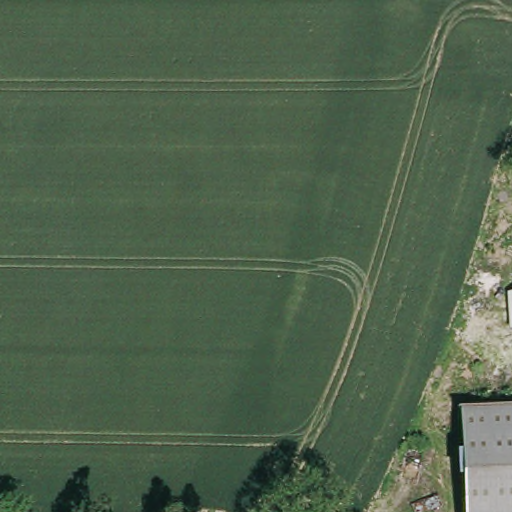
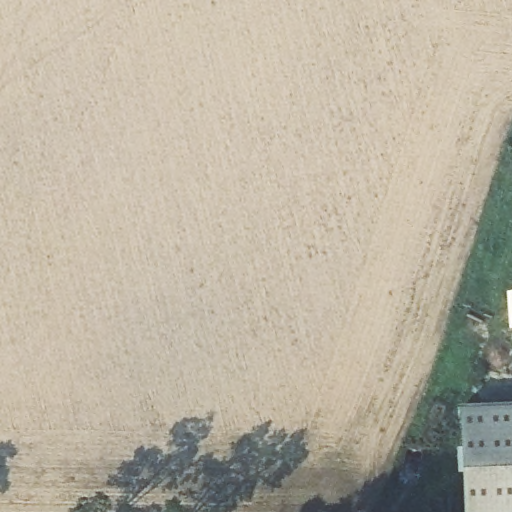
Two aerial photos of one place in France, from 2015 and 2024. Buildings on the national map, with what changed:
unchanged [(458,411),(512,408),(512,512),(460,512),(458,411)]

